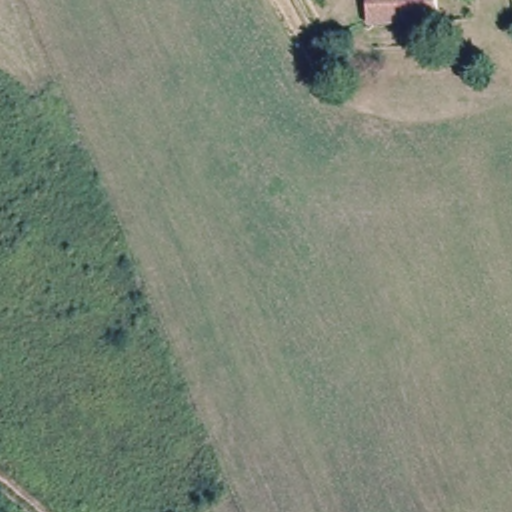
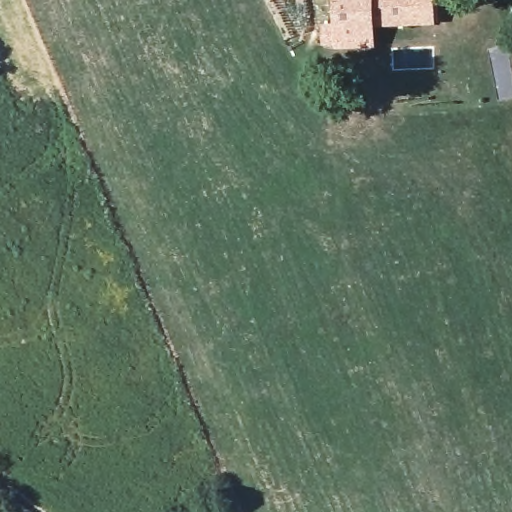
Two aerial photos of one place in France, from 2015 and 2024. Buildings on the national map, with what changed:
new [(375,23),(376,47),(335,49),(334,45),(323,45),(322,25),(334,24),(333,0),(371,0),(371,23),(375,23)]
unchanged [(371,23),(371,0),(434,0),(435,22),(371,23)]

